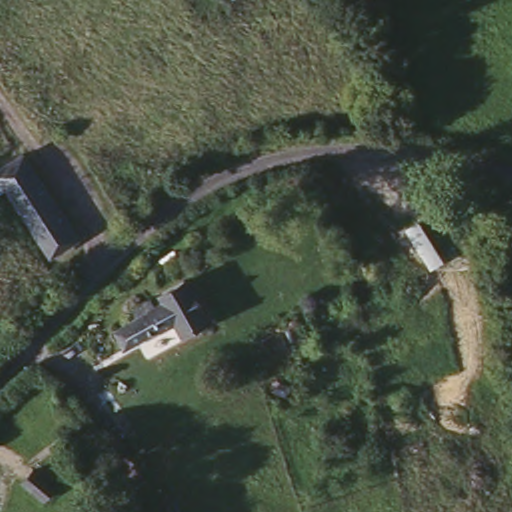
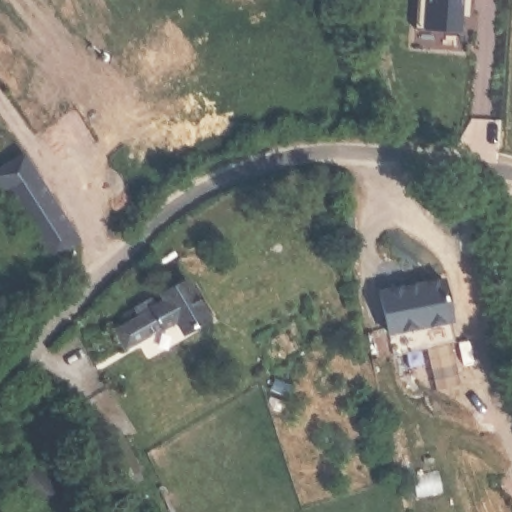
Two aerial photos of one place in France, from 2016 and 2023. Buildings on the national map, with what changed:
new [(420,0),(473,0),(473,19),(461,18),(461,33),(418,29),(420,0)]
unchanged [(50,259),(7,190),(0,195),(0,166),(29,147),(84,238),(50,259)]
new [(438,274),(455,339),(396,357),(378,292),(438,274)]
unchanged [(143,316),(137,308),(155,296),(160,303),(169,297),(165,290),(187,275),(216,314),(192,330),(182,316),(132,350),(120,332),(143,316)]
unchanged [(125,423),(144,449),(128,461),(109,435),(125,423)]
unchanged [(114,457),(102,465),(80,436),(91,428),(114,457)]
unchanged [(37,468),(60,485),(48,502),(25,486),(37,468)]

